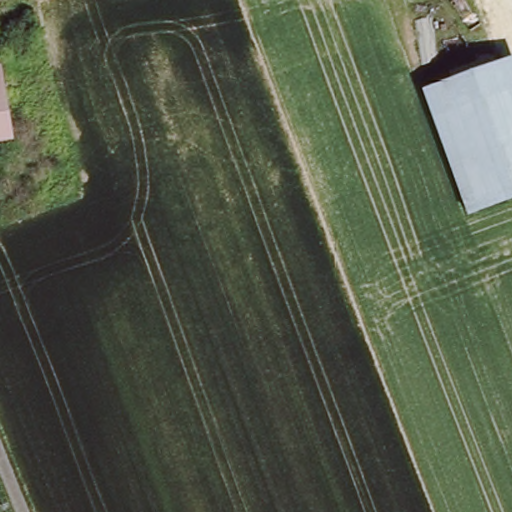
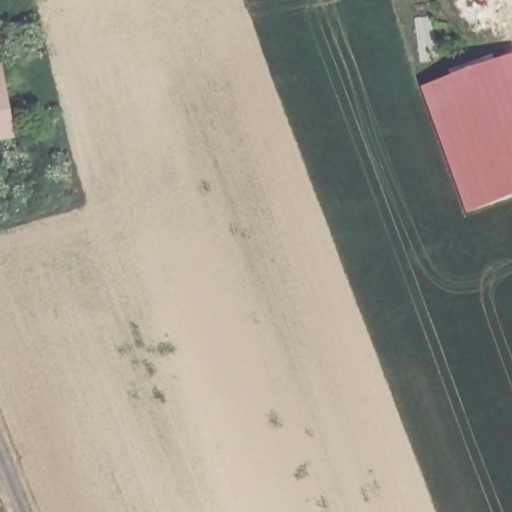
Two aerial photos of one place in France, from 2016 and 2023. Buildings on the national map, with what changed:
unchanged [(425,92),(512,58),(512,197),(472,213),(425,92)]
unchanged [(0,65),(2,65),(19,143),(0,145),(0,65)]

